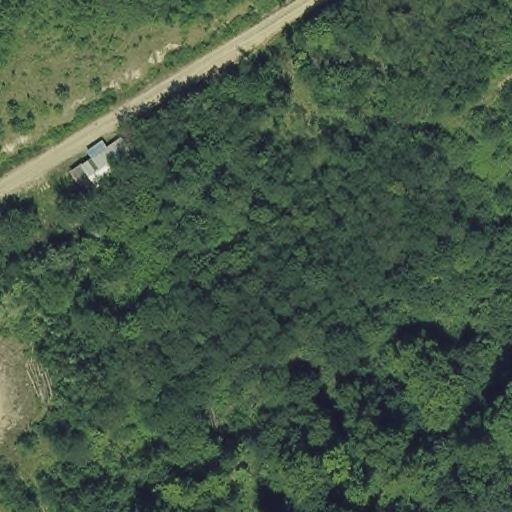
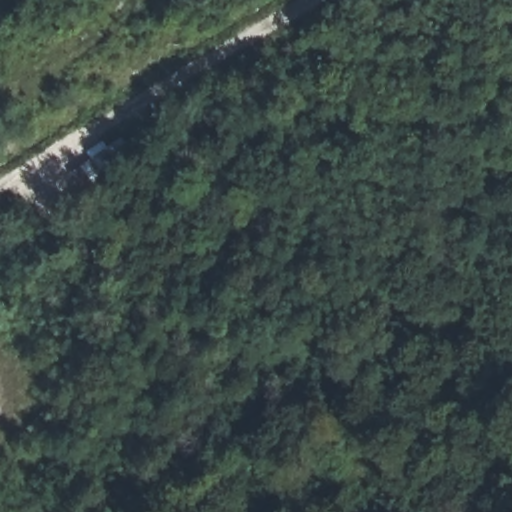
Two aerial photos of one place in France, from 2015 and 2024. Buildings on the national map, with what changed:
unchanged [(85,166),(125,141),(138,159),(97,186),(85,166)]

